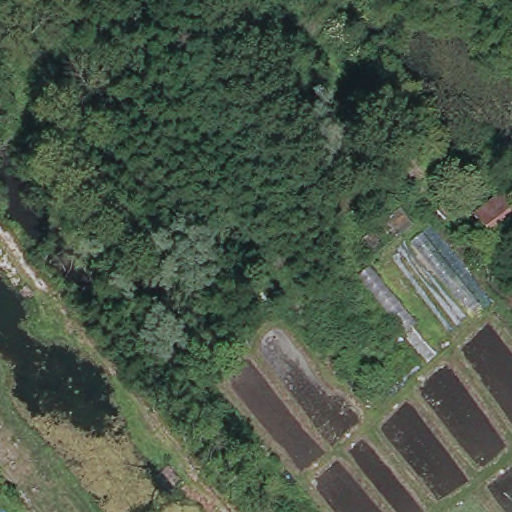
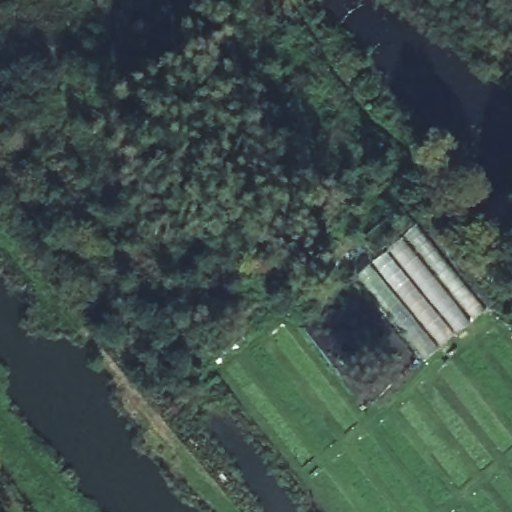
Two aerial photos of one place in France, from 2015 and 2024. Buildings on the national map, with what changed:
unchanged [(497,246),(477,221),(508,195),(512,200),(512,234),(497,246)]
new [(423,362),(356,279),(416,225),(485,311),(423,362)]

